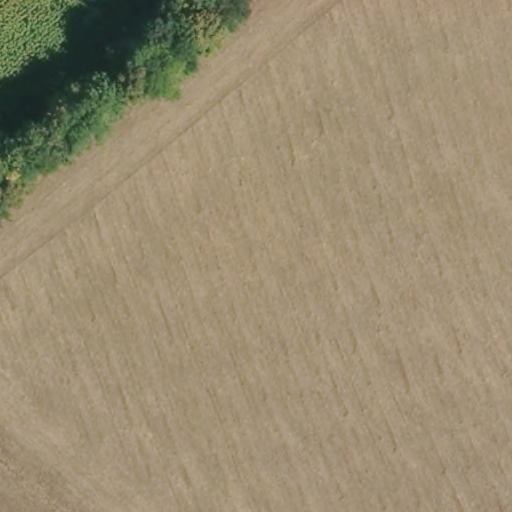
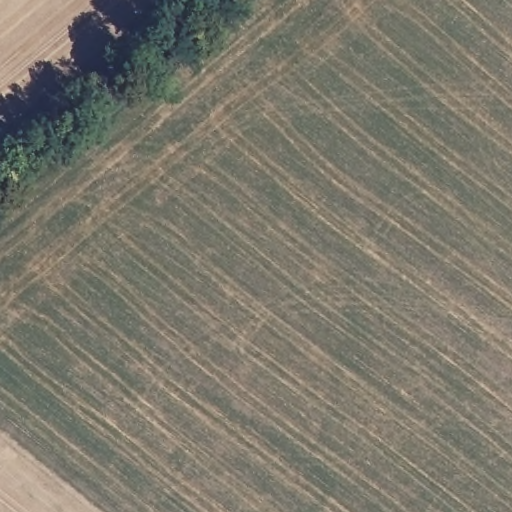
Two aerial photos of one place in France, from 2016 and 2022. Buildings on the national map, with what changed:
[]

